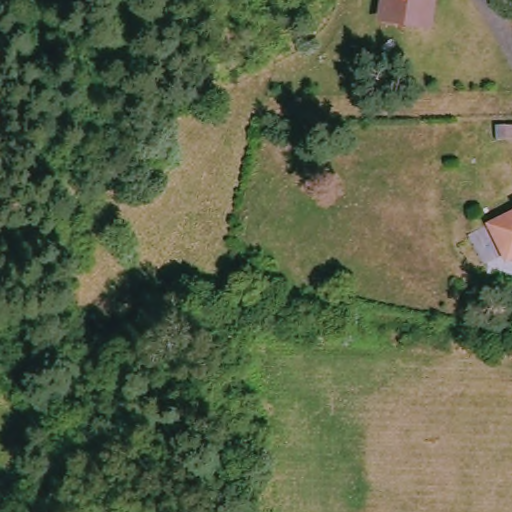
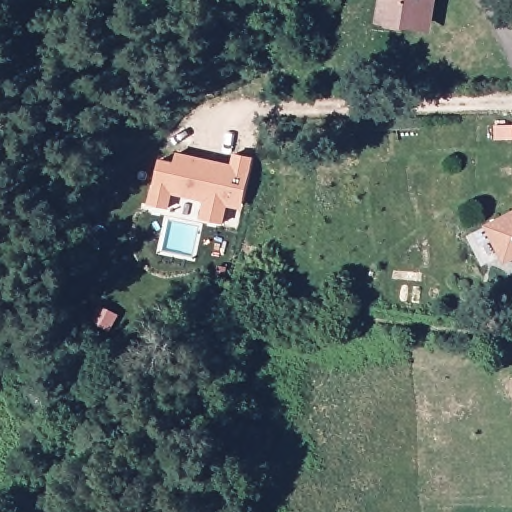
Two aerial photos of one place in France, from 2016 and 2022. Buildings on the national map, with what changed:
unchanged [(380,20),(382,0),(429,0),(426,25),(380,20)]
new [(498,126),(512,126),(512,136),(498,137),(498,126)]
new [(161,159),(176,162),(178,152),(231,164),(234,153),(254,158),(241,210),(228,208),(225,223),(201,218),(205,201),(174,194),(170,208),(150,203),(161,159)]
unchanged [(506,259),(498,257),(482,229),(512,213),(512,257),(506,259)]
new [(111,315),(130,322),(122,337),(105,328),(111,315)]

